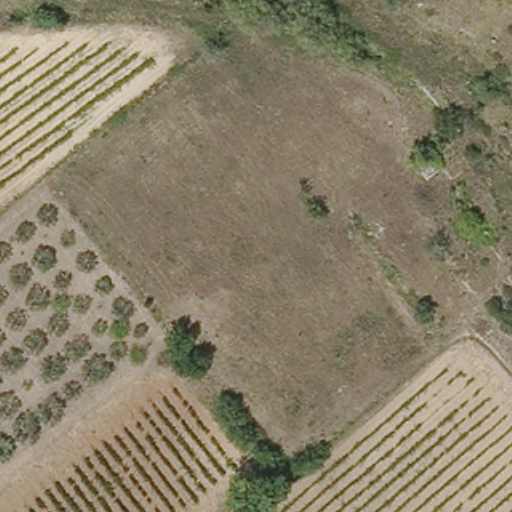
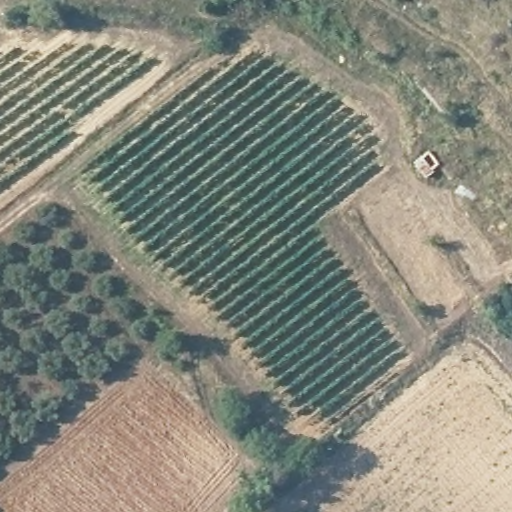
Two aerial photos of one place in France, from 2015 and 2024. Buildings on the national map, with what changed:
unchanged [(447,165),(432,179),(412,163),(435,148),(447,165)]

